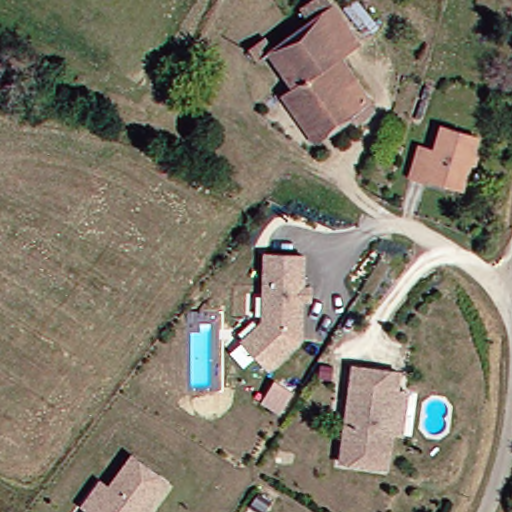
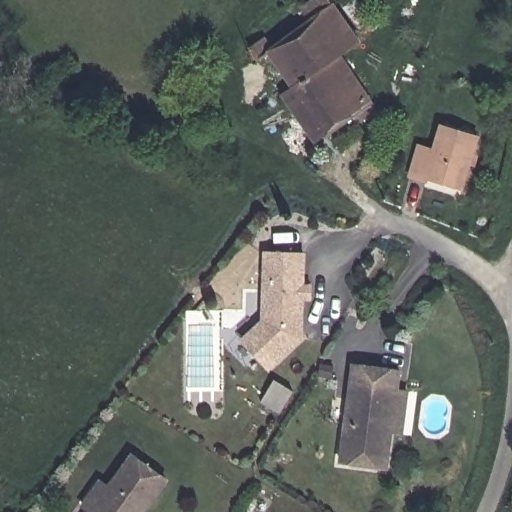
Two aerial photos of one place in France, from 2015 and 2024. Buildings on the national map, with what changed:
unchanged [(265,52),(251,60),(243,47),(256,40),(263,50),(293,30),(285,15),(309,0),(326,0),(330,6),(352,43),(331,57),(364,106),(319,135),(309,142),(279,96),(289,90),(265,52)]
unchanged [(437,126),(472,137),(455,188),(405,174),(414,143),(431,147),(437,126)]
unchanged [(243,337),(263,318),(269,250),(304,250),(302,335),(270,365),(243,337)]
unchanged [(343,460),(355,362),(403,368),(401,386),(410,387),(405,431),(395,430),(390,466),(343,460)]
unchanged [(264,403),(276,381),(295,391),(283,413),(264,403)]
unchanged [(87,505),(105,480),(113,485),(136,453),(170,477),(145,512),(93,512),(95,510),(87,505)]

